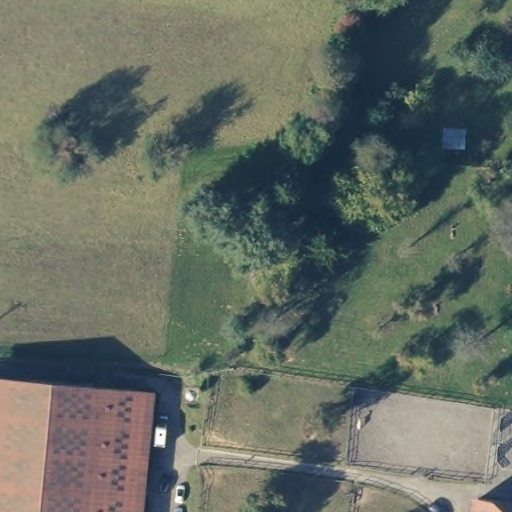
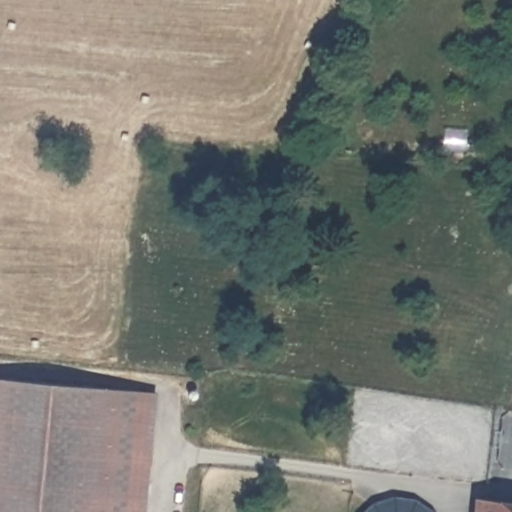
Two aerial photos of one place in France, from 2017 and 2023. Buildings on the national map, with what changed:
unchanged [(156,396),(144,512),(0,512),(0,383),(156,396)]
unchanged [(512,512),(481,512),(483,498),(512,502),(512,512)]

